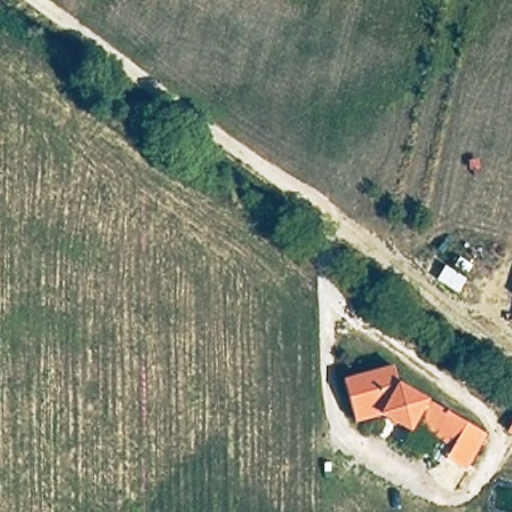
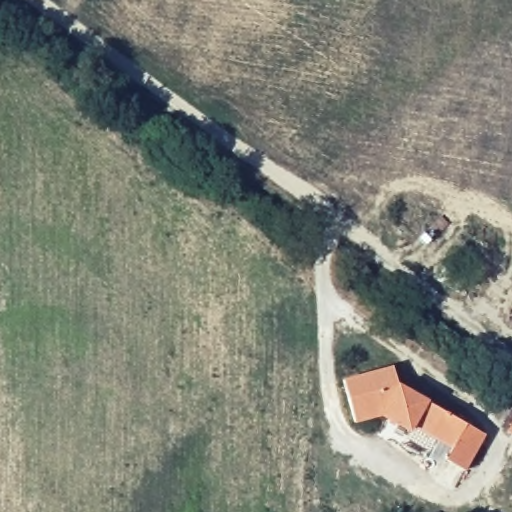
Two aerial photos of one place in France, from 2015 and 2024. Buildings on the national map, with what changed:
unchanged [(436,282),(444,267),(464,281),(457,294),(436,282)]
unchanged [(442,463),(448,451),(380,418),(353,429),(340,382),(394,369),(406,392),(425,402),(489,439),(466,477),(442,463)]

